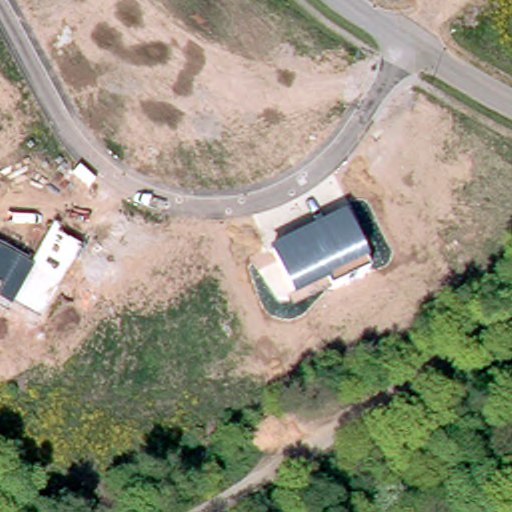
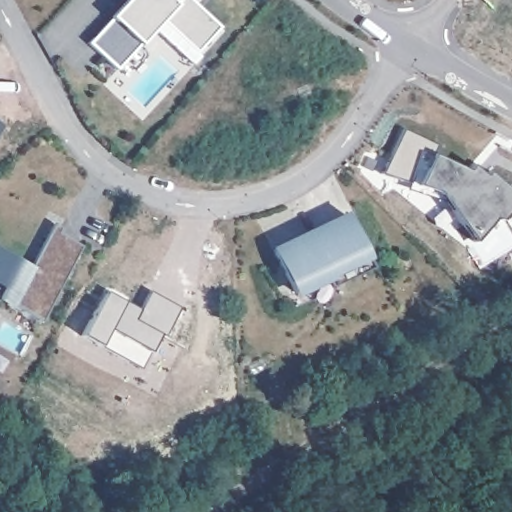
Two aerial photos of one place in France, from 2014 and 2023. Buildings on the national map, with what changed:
new [(111,17),(126,0),(189,0),(220,29),(197,54),(163,20),(140,45),(115,70),(87,44),(111,17)]
new [(405,130),(435,146),(433,152),(472,177),(477,172),(483,177),(485,174),(512,186),(512,244),(492,219),(473,242),(438,189),(385,175),(405,130)]
unchanged [(327,277),(292,297),(269,247),(343,210),(368,267),(330,285),(327,277)]
unchanged [(60,234),(83,244),(38,321),(0,300),(0,288),(1,287),(0,286),(0,242),(32,260),(53,224),(62,227),(60,234)]
new [(107,295),(138,312),(149,293),(177,309),(165,335),(162,333),(142,371),(85,337),(107,295)]

